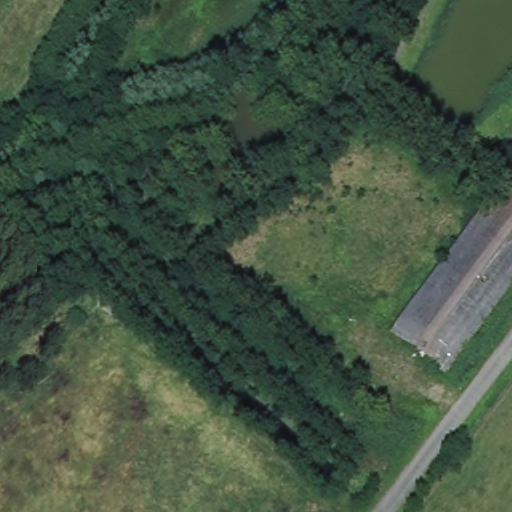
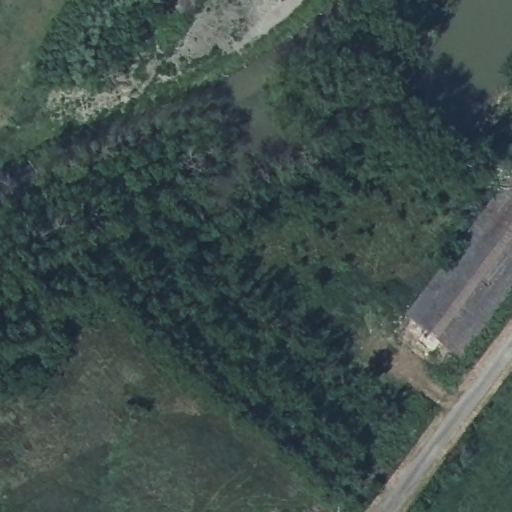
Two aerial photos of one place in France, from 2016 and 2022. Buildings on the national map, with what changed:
unchanged [(512,216),(501,208),(507,200),(512,193),(512,216)]
unchanged [(405,334),(501,208),(512,216),(512,298),(453,375),(405,334)]

